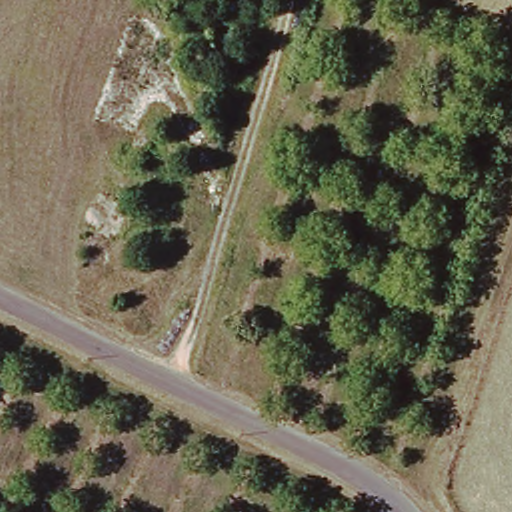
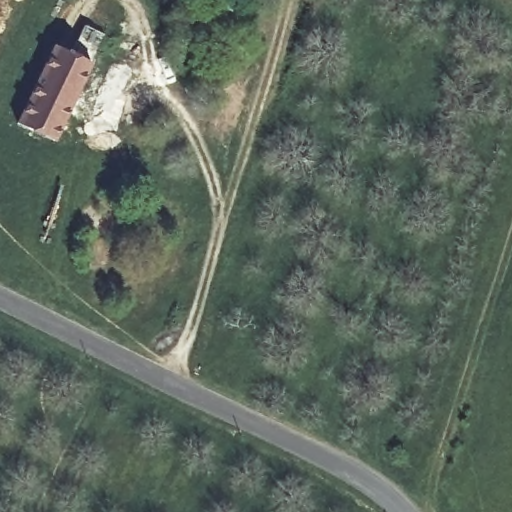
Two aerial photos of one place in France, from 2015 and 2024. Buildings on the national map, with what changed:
new [(52,46),(70,55),(83,26),(103,36),(52,142),(15,124),(52,46)]

